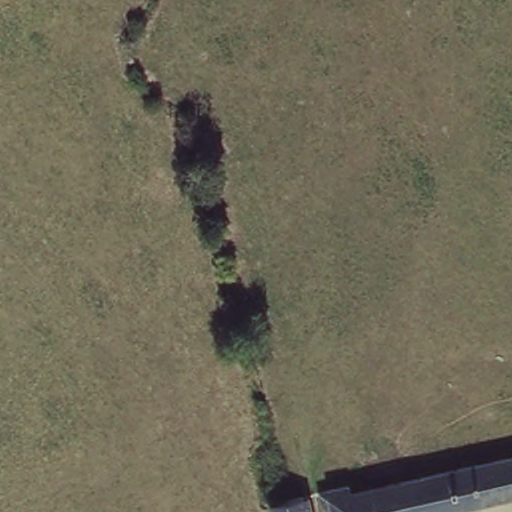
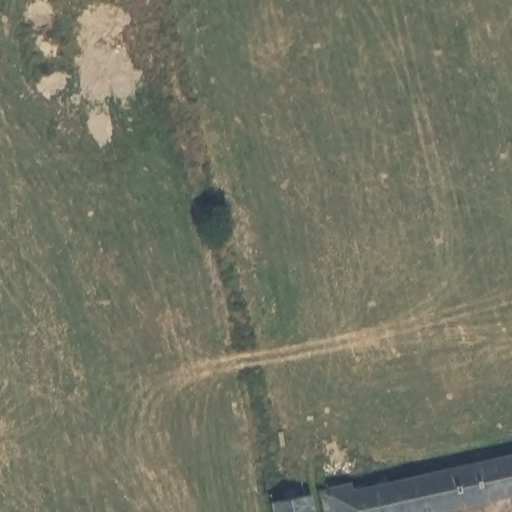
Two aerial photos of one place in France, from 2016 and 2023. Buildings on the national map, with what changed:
unchanged [(329,512),(322,486),(348,479),(352,493),(512,455),(512,493),(432,512),(329,512)]
unchanged [(278,498),(306,491),(311,512),(279,512),(276,499),(278,498)]

